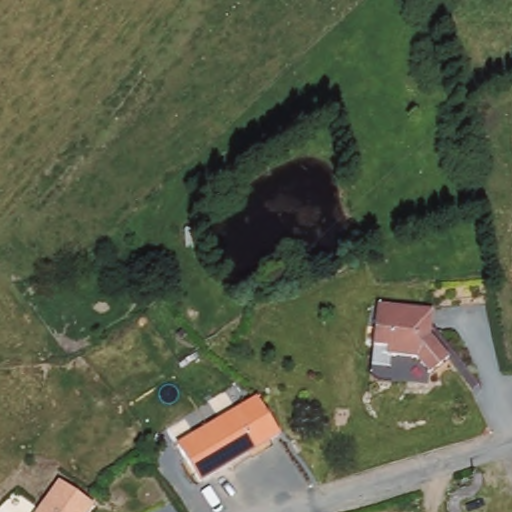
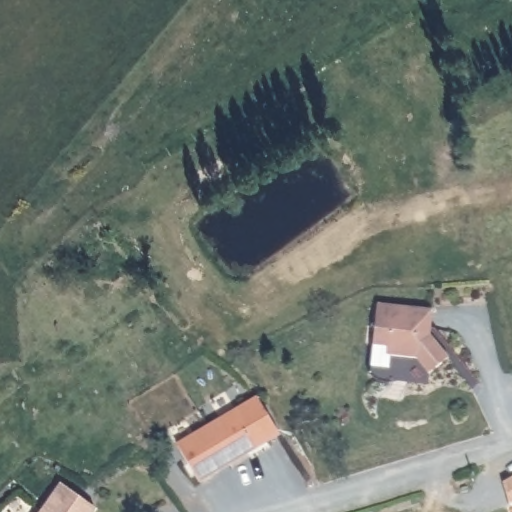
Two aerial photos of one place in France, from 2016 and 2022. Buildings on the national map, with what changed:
unchanged [(435,313),(434,338),(451,357),(432,375),(419,360),(390,358),(390,349),(376,348),(381,307),(435,313)]
unchanged [(284,433),(205,482),(182,446),(257,394),(284,433)]
new [(502,483),(512,477),(512,503),(508,505),(502,483)]
unchanged [(96,512),(34,512),(67,483),(96,512)]

